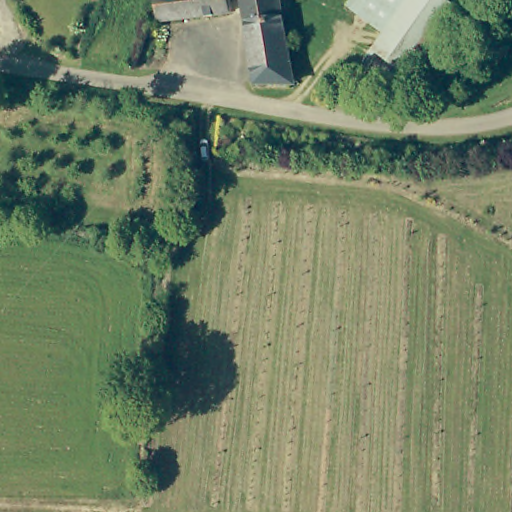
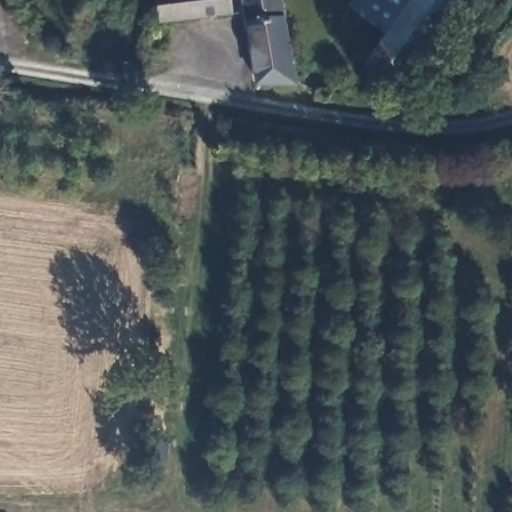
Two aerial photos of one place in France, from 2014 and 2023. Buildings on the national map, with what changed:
unchanged [(173,24),(170,21),(162,22),(161,8),(160,0),(227,0),(229,15),(173,24)]
unchanged [(292,83),(254,87),(241,0),(281,0),(292,81),(292,83)]
unchanged [(352,10),(358,0),(369,0),(375,3),(377,0),(419,0),(393,38),(352,10)]
unchanged [(404,90),(372,71),(393,38),(419,0),(451,0),(462,8),(404,90)]

